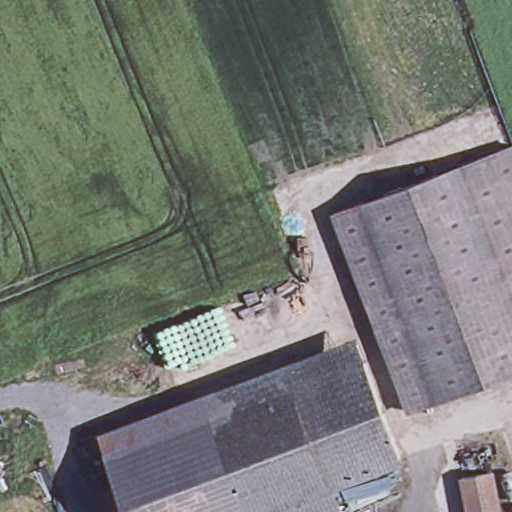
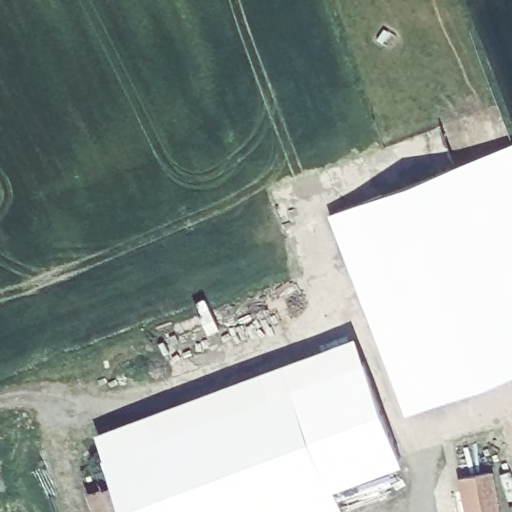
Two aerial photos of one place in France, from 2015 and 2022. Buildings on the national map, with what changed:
unchanged [(332,215),(512,146),(512,373),(407,414),(332,215)]
unchanged [(95,447),(358,342),(365,361),(102,465),(95,447)]
unchanged [(402,454),(248,512),(120,512),(105,471),(102,465),(365,361),(402,454)]
unchanged [(120,512),(97,512),(85,478),(105,471),(120,512)]
unchanged [(458,481),(495,477),(501,512),(463,512),(458,481)]

